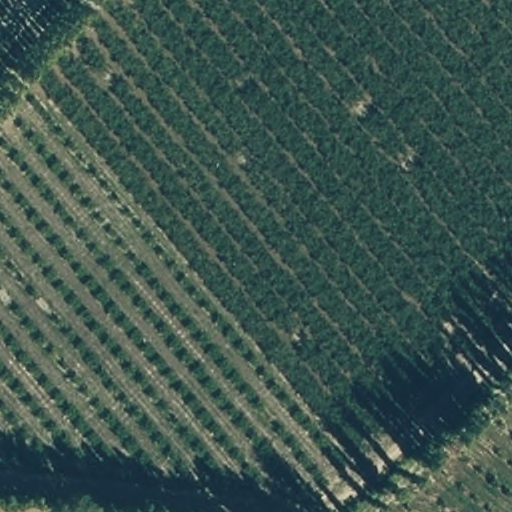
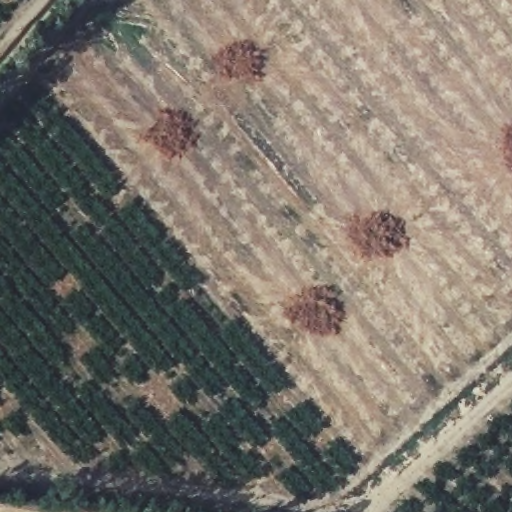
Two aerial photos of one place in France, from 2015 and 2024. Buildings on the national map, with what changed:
[]

